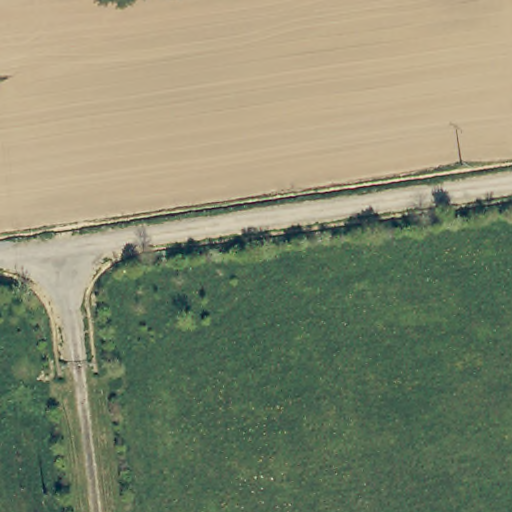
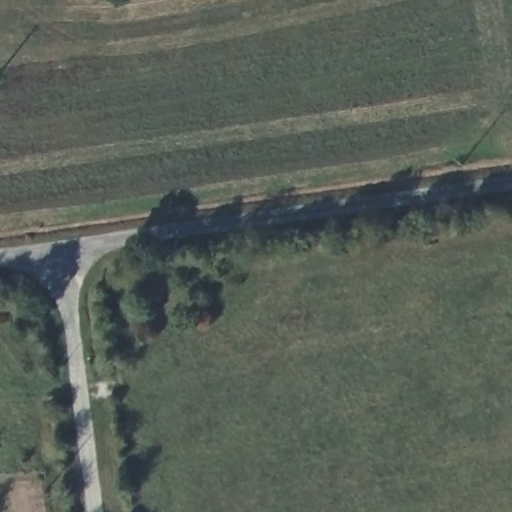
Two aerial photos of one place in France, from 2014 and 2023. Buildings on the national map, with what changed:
[]

